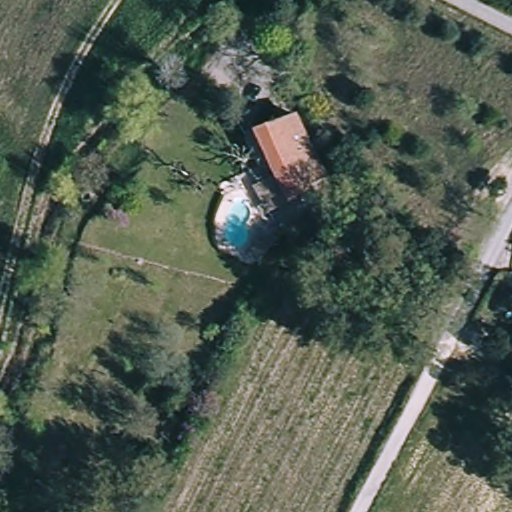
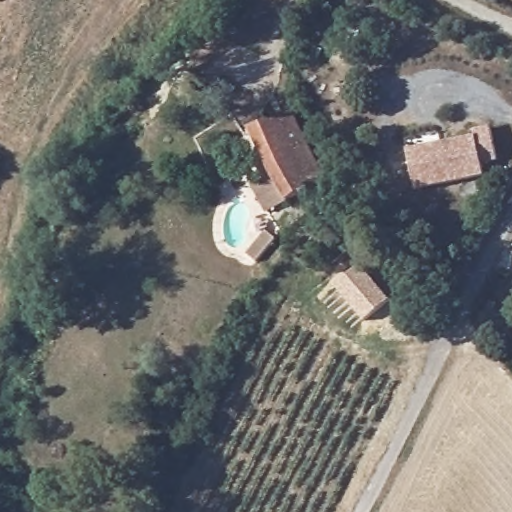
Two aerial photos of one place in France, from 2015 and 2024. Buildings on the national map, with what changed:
unchanged [(272,172),(251,123),(292,110),(327,175),(306,186),(308,190),(291,198),(267,209),(253,182),(272,172)]
new [(475,137),(474,130),(490,127),(497,162),(484,164),(486,177),(416,191),(408,150),(475,137)]
unchanged [(349,252),(338,265),(313,239),(324,228),(349,252)]
unchanged [(263,234),(271,242),(251,264),(242,256),(263,234)]
new [(361,266),(389,300),(364,322),(335,288),(361,266)]

